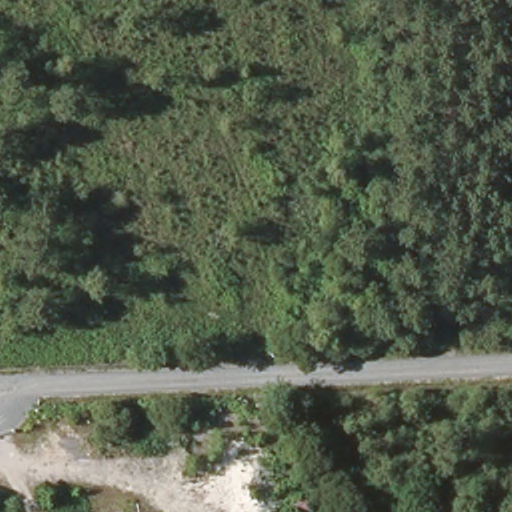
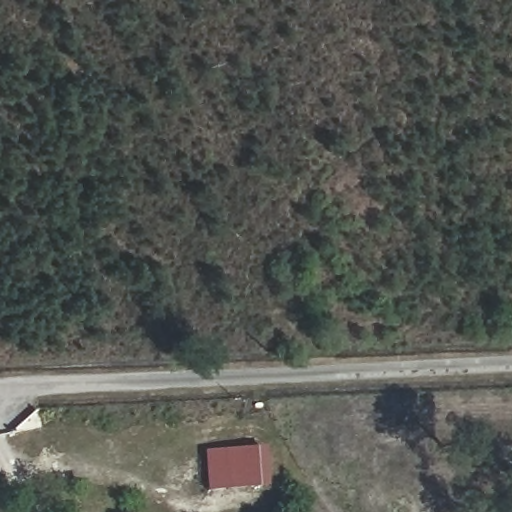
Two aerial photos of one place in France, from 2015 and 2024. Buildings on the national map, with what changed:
new [(267,487),(207,491),(204,450),(265,447),(267,487)]

